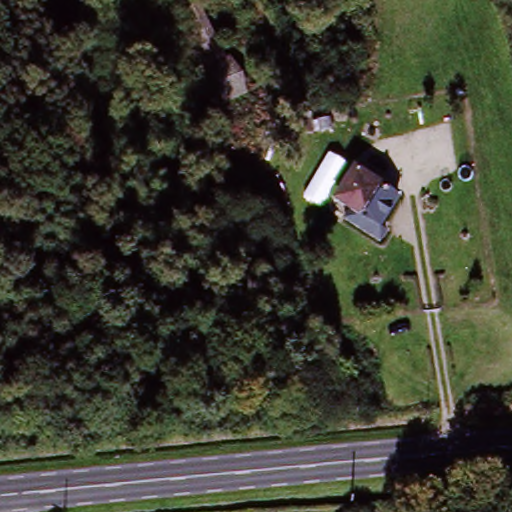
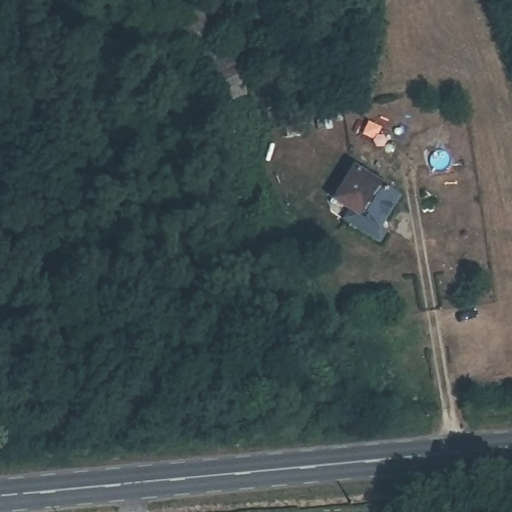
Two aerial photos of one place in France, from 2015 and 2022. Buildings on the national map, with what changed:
unchanged [(346,204),(335,197),(352,166),(392,187),(371,227),(342,211),(346,204)]

